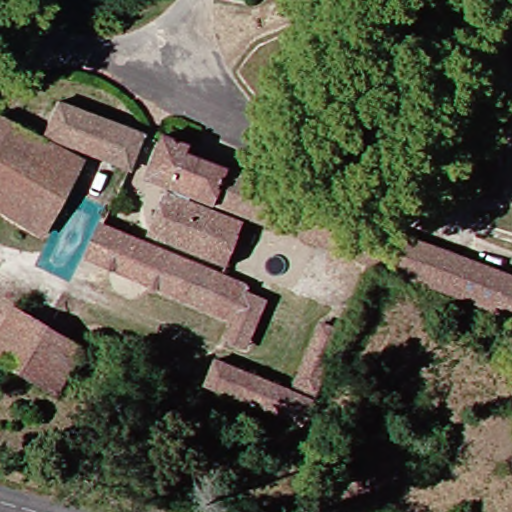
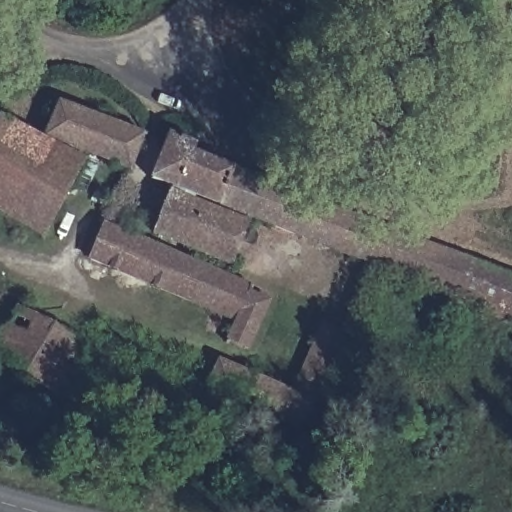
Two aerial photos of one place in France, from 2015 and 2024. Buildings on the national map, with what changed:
unchanged [(137,136),(125,168),(42,134),(52,104),(137,136)]
unchanged [(40,231),(0,213),(0,119),(70,160),(40,231)]
unchanged [(240,211),(220,257),(145,227),(160,188),(141,179),(155,146),(160,136),(183,145),(182,152),(512,275),(512,313),(375,262),(240,211)]
unchanged [(226,316),(83,257),(97,224),(242,281),(226,316)]
unchanged [(262,288),(242,341),(220,332),(226,316),(242,281),(262,288)]
unchanged [(0,366),(0,331),(8,316),(67,342),(46,387),(0,366)]
unchanged [(341,331),(312,397),(292,390),(285,387),(315,321),(341,331)]
unchanged [(177,378),(192,347),(285,387),(292,390),(278,421),(177,378)]

